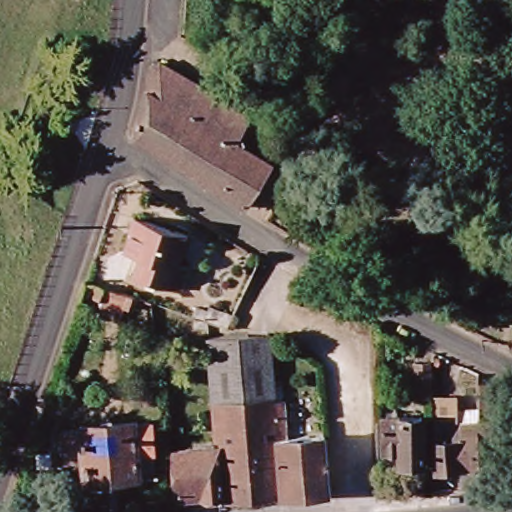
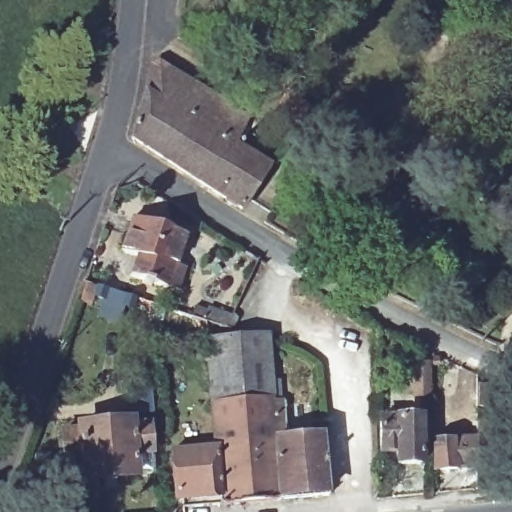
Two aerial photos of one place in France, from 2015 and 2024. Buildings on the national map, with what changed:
unchanged [(242,209),(133,139),(133,138),(146,89),(151,65),(159,62),(250,115),(235,144),(270,164),(242,209)]
unchanged [(177,260),(185,263),(177,287),(153,278),(151,280),(143,278),(144,275),(129,270),(130,269),(137,270),(143,253),(136,251),(121,245),(133,213),(187,230),(177,260)]
unchanged [(118,323),(98,317),(103,299),(94,296),(97,285),(136,298),(133,309),(123,305),(118,323)]
unchanged [(226,327),(198,318),(192,316),(195,306),(207,310),(208,305),(233,313),(226,327)]
unchanged [(207,337),(267,333),(271,403),(283,402),(287,438),(323,435),(329,495),(222,504),(218,448),(216,448),(207,337)]
unchanged [(430,395),(414,396),(413,362),(429,362),(430,395)]
unchanged [(495,407),(477,407),(477,384),(495,384),(495,407)]
unchanged [(472,467),(434,470),(433,394),(455,394),(455,420),(459,420),(459,422),(477,422),(477,438),(472,438),(472,467)]
unchanged [(381,417),(421,417),(421,464),(398,464),(398,452),(381,452),(381,417)]
unchanged [(495,449),(477,449),(477,422),(495,422),(495,449)]
unchanged [(153,479),(136,480),(136,481),(83,485),(81,464),(65,466),(62,437),(79,435),(79,432),(131,428),(131,431),(149,429),(151,458),(153,479)]
unchanged [(216,448),(218,448),(222,504),(183,508),(182,494),(175,496),(172,451),(216,448)]

